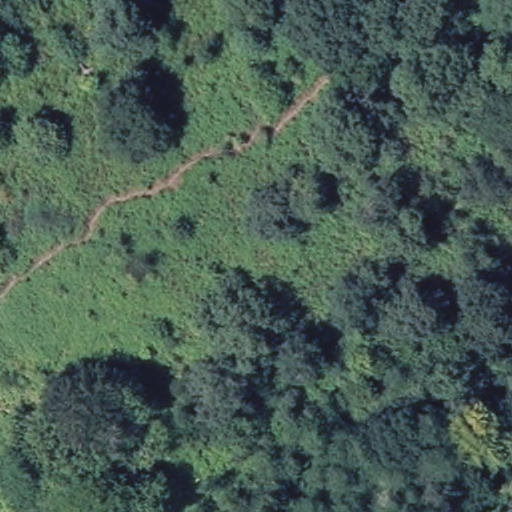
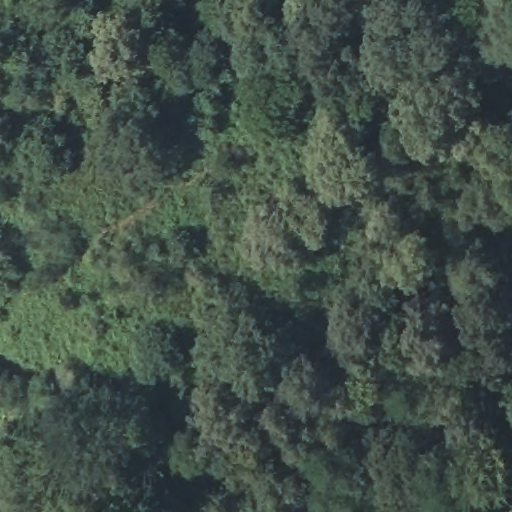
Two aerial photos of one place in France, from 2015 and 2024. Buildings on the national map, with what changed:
[]

